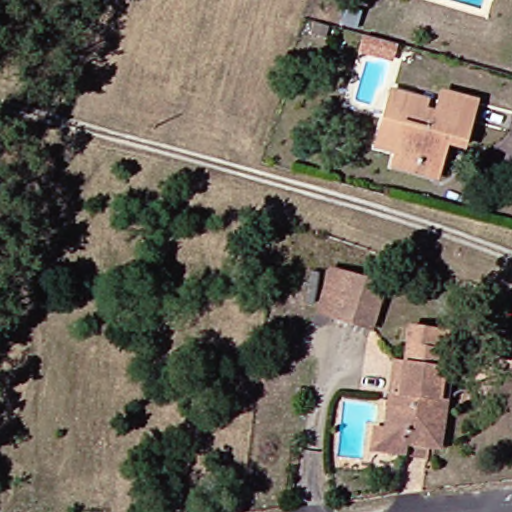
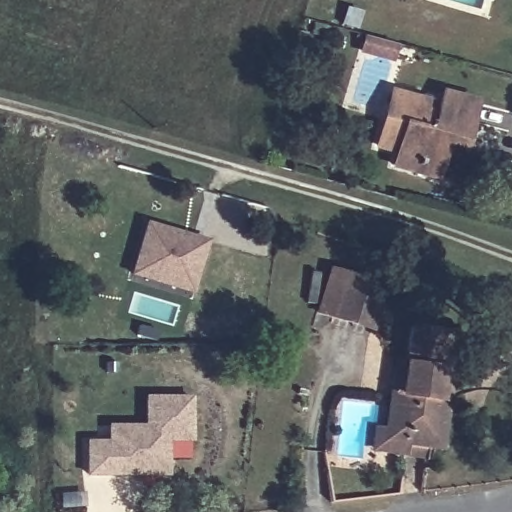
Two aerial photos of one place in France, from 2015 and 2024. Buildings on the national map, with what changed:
unchanged [(390,151),(369,146),(383,92),(405,98),(418,101),(416,111),(429,115),(434,94),(467,102),(456,146),(440,141),(437,152),(430,177),(407,171),(386,165),(390,151)]
new [(130,273),(145,223),(204,242),(189,292),(169,286),(147,278),(130,273)]
unchanged [(311,312),(318,267),(335,270),(338,271),(375,278),(366,323),(331,316),(327,315),(311,312)]
unchanged [(297,282),(307,284),(303,304),(295,302),(297,282)]
unchanged [(371,448),(376,426),(385,376),(387,357),(397,360),(403,322),(429,325),(438,327),(435,347),(443,348),(437,387),(428,444),(418,442),(415,457),(391,452),(371,448)]
new [(84,471),(85,440),(106,440),(106,424),(130,425),(144,425),(144,396),(189,396),(189,438),(165,438),(164,472),(129,472),(116,472),(84,471)]

